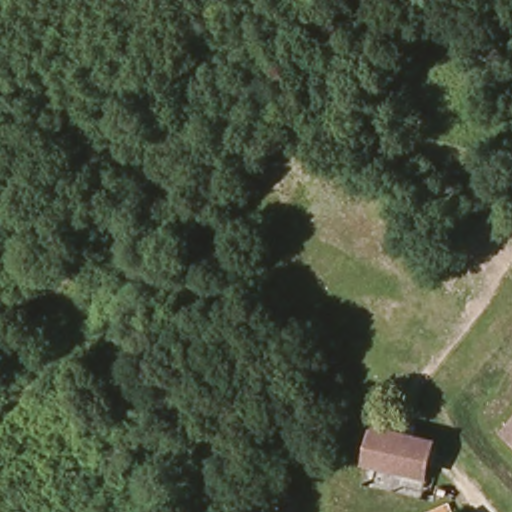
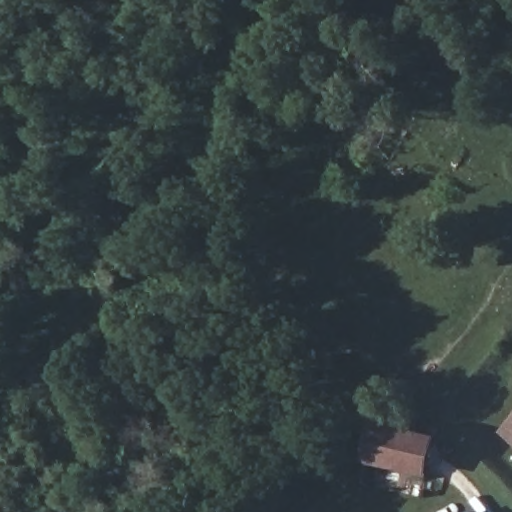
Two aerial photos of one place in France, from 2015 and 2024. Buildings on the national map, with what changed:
unchanged [(374,463),(382,429),(440,444),(432,476),(374,463)]
unchanged [(512,437),(512,439),(511,439),(512,437)]

